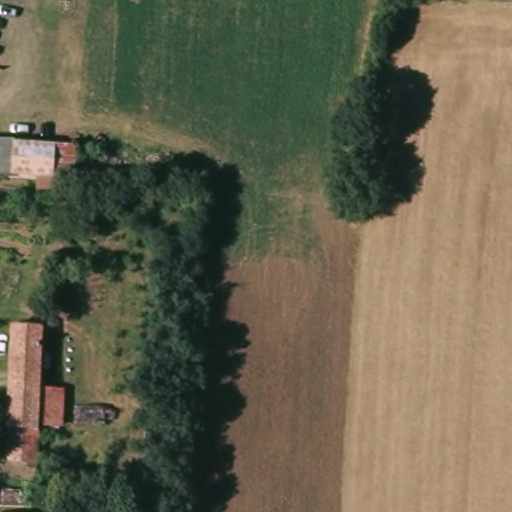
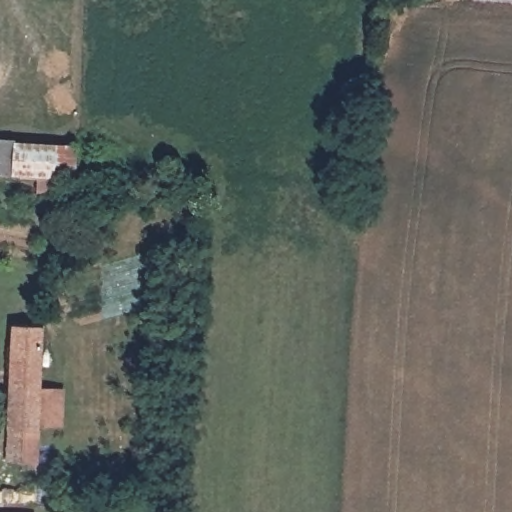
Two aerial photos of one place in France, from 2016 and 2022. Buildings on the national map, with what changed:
unchanged [(56,149),(54,186),(0,182),(0,145),(56,149)]
unchanged [(92,152),(90,188),(54,186),(56,149),(92,152)]
unchanged [(16,373),(19,328),(47,330),(40,454),(11,451),(16,373)]

